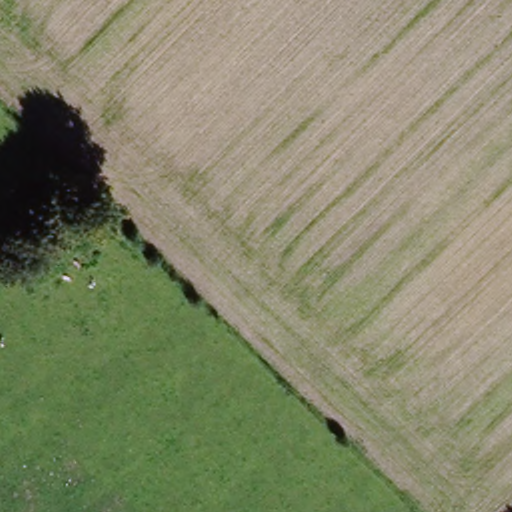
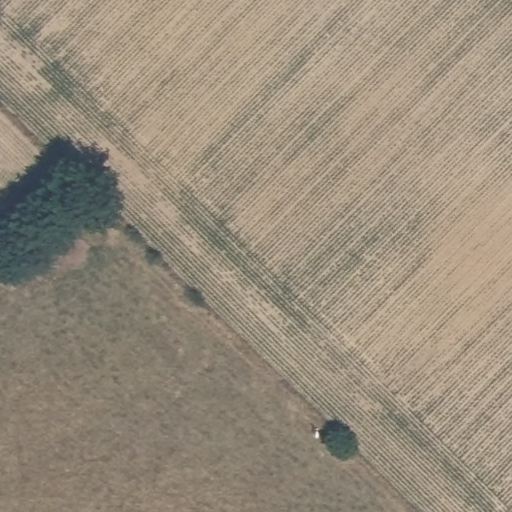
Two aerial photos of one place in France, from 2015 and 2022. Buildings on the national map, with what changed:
[]

